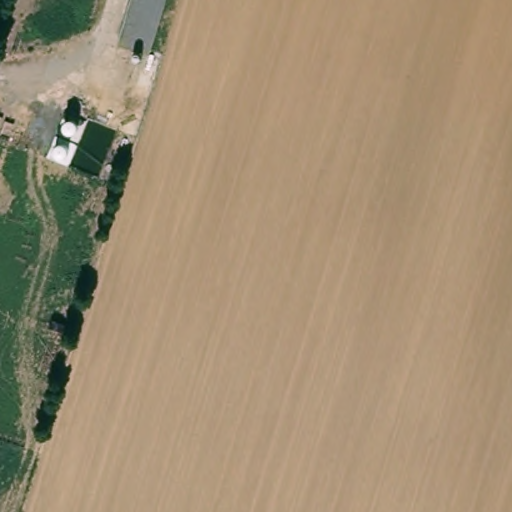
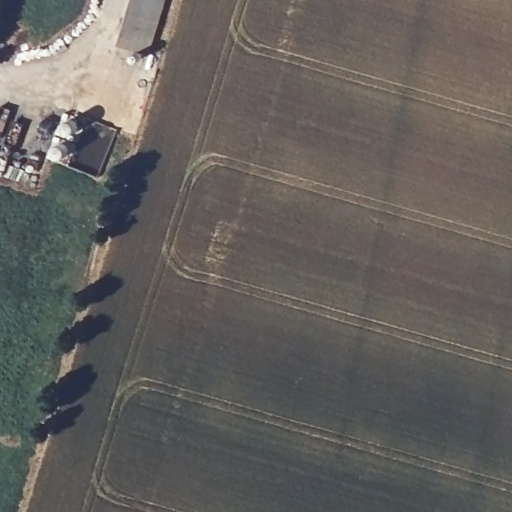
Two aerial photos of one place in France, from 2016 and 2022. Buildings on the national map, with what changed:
unchanged [(115,47),(131,0),(155,0),(138,55),(115,47)]
unchanged [(138,55),(155,0),(166,0),(147,57),(138,55)]

